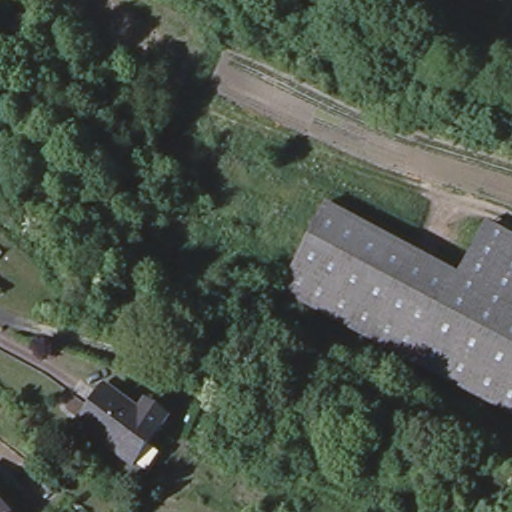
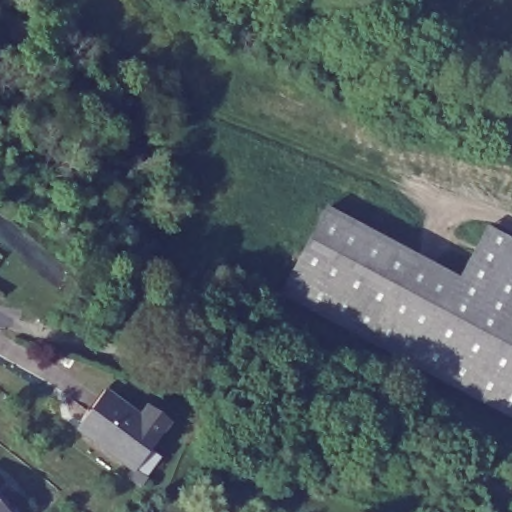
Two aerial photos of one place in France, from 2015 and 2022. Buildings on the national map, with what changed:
unchanged [(321,211),(452,282),(512,314),(512,426),(274,298),(321,211)]
unchanged [(480,229),(512,247),(512,314),(452,282),(480,229)]
unchanged [(102,396),(136,421),(146,408),(165,424),(132,469),(78,428),(102,396)]

